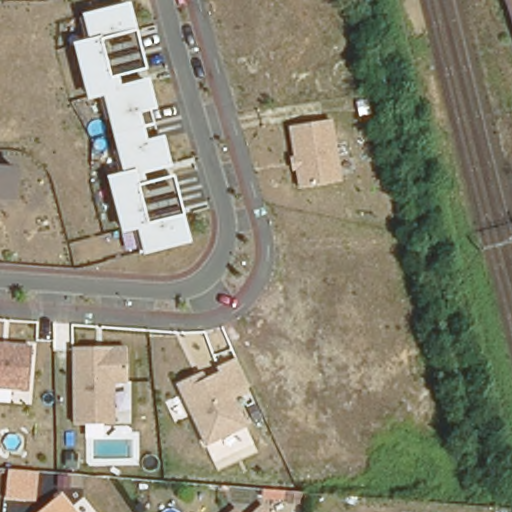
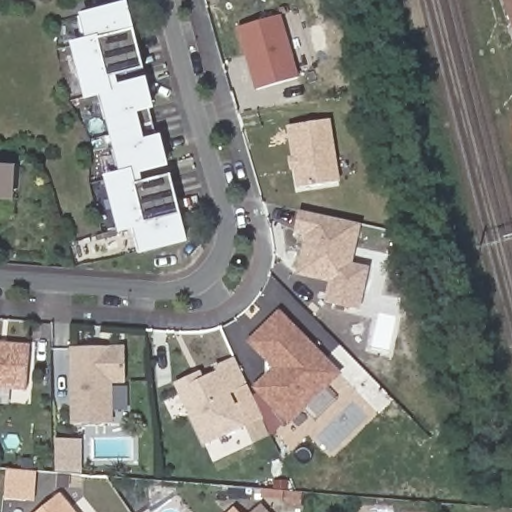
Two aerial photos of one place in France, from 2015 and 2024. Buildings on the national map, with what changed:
unchanged [(512,0),(512,15),(507,0),(512,0)]
unchanged [(191,243),(142,255),(134,231),(120,235),(103,176),(120,172),(100,98),(86,101),(72,44),(86,39),(80,16),(128,2),(191,243)]
new [(279,15),(297,77),(256,89),(238,27),(279,15)]
unchanged [(299,189),(289,127),(331,120),(341,182),(299,189)]
unchanged [(15,203),(0,202),(0,167),(17,168),(15,203)]
new [(360,225),(354,265),(369,268),(362,310),(331,304),(335,286),(304,280),(309,254),(303,253),(307,232),(296,229),(300,209),(360,225)]
new [(326,386),(290,422),(256,387),(276,367),(250,341),(280,311),(326,358),(340,372),(326,386)]
unchanged [(31,391),(0,389),(0,343),(31,345),(31,391)]
unchanged [(114,386),(115,426),(72,426),(70,347),(127,347),(126,386),(114,386)]
unchanged [(231,394),(248,426),(206,447),(176,385),(237,356),(250,385),(231,394)]
new [(262,416),(250,422),(239,399),(251,393),(262,416)]
new [(77,440),(77,473),(57,473),(56,440),(77,440)]
unchanged [(37,471),(35,498),(25,498),(0,496),(0,468),(27,470),(29,470),(37,471)]
unchanged [(56,490),(73,512),(29,512),(56,490)]
unchanged [(261,503),(268,512),(250,512),(261,503)]
unchanged [(231,507),(236,512),(226,512),(231,507)]

